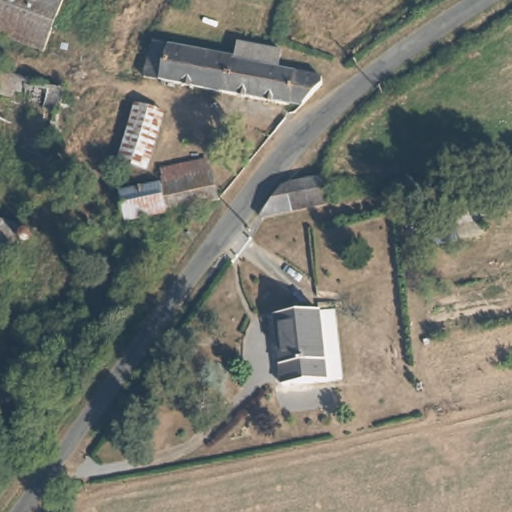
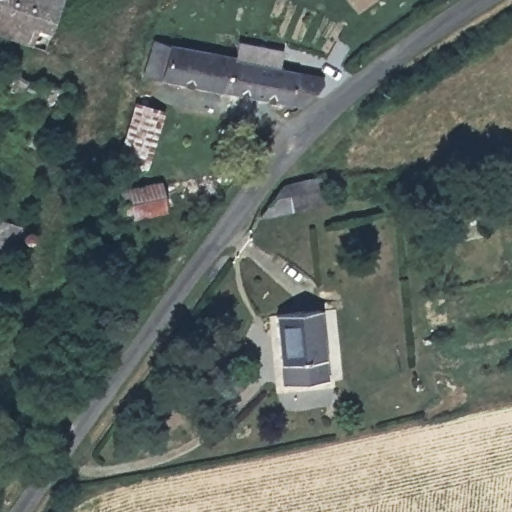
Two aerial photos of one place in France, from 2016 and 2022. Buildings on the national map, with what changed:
unchanged [(42,55),(0,38),(0,0),(63,0),(42,55)]
unchanged [(292,114),(137,79),(152,36),(162,43),(234,59),(238,40),(279,48),(277,69),(328,80),(292,114)]
unchanged [(159,113),(139,172),(114,164),(130,106),(159,113)]
unchanged [(161,189),(157,164),(209,154),(217,205),(166,216),(161,189)]
unchanged [(282,188),(318,181),(325,208),(255,222),(282,188)]
unchanged [(103,198),(106,197),(161,189),(166,216),(107,229),(103,207),(103,198)]
unchanged [(321,311),(327,383),(276,389),(270,319),(321,311)]

